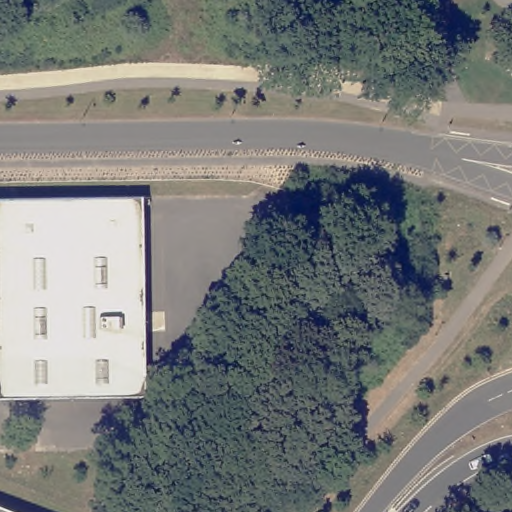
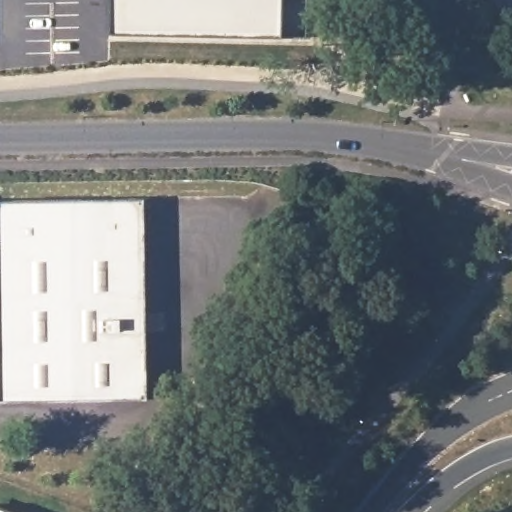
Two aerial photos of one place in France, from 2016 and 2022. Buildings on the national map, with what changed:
new [(281,0),(281,36),(109,33),(109,0),(281,0)]
unchanged [(0,401),(0,202),(19,202),(143,201),(146,399),(20,401),(0,401)]
unchanged [(0,508),(10,512),(0,512),(0,508)]

